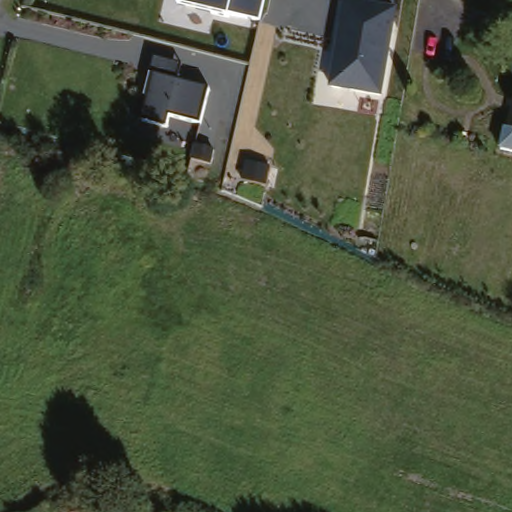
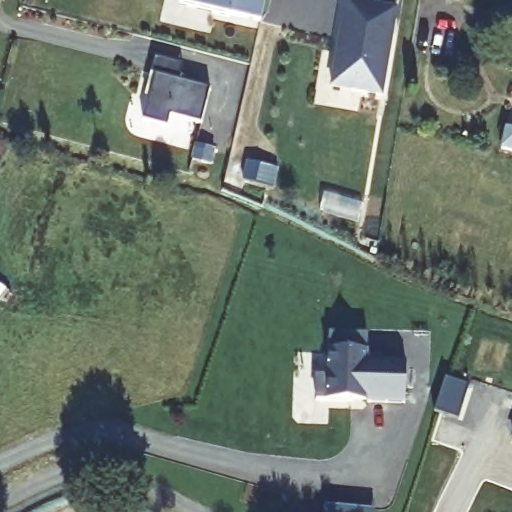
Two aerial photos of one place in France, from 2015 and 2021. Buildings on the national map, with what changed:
unchanged [(180,0),(259,0),(257,20),(180,3),(180,0)]
unchanged [(398,8),(383,96),(330,86),(345,0),(351,0),(398,8)]
unchanged [(154,98),(146,96),(152,58),(183,65),(180,77),(210,89),(205,120),(173,113),(171,126),(150,120),(154,98)]
unchanged [(512,127),(512,154),(502,151),(507,126),(512,127)]
new [(316,375),(327,375),(329,334),(371,336),(370,361),(407,363),(405,404),(315,400),(316,375)]

